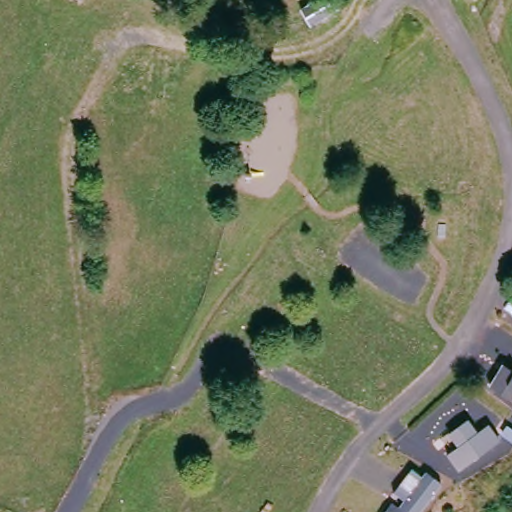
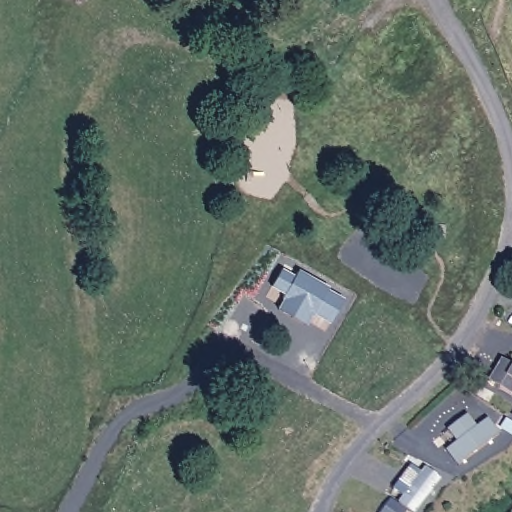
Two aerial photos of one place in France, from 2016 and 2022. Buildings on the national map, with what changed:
new [(282,271),(295,278),(299,271),(330,287),(330,290),(345,298),(333,321),(317,312),(316,315),(285,299),(287,294),(274,287),(282,271)]
unchanged [(512,380),(512,402),(502,396),(512,380)]
unchanged [(495,424),(505,441),(462,469),(451,453),(495,424)]
unchanged [(433,466),(450,475),(428,512),(423,512),(411,505),(433,466)]
unchanged [(404,504),(417,512),(399,512),(404,504)]

